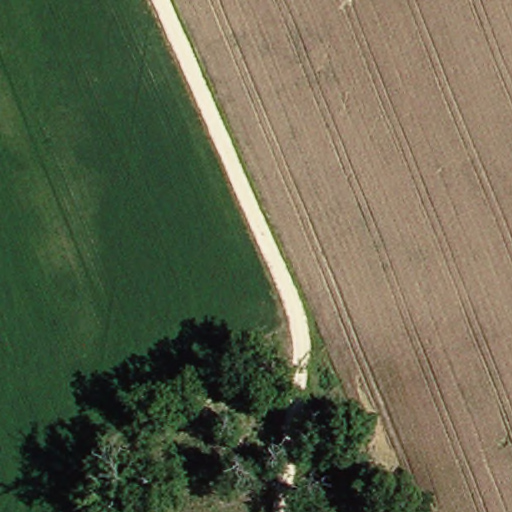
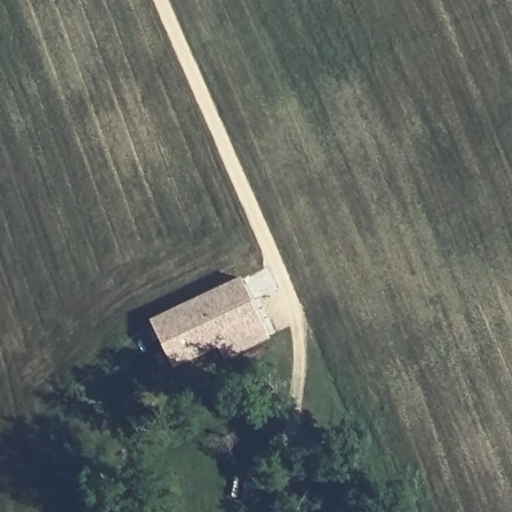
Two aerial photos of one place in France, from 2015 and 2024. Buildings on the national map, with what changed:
new [(225,361),(219,348),(174,370),(151,320),(241,278),(270,340),(225,361)]

